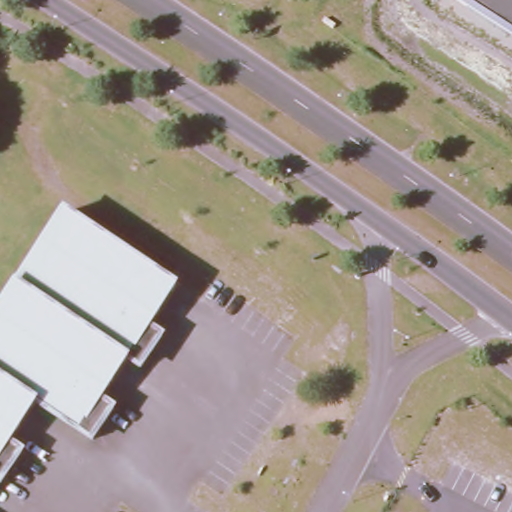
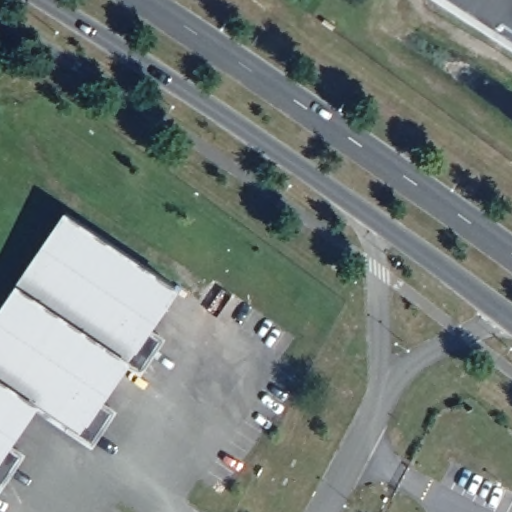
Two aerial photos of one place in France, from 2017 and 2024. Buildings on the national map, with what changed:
unchanged [(444,0),(512,0),(512,43),(444,0)]
unchanged [(63,209),(177,285),(150,329),(162,336),(141,370),(127,361),(102,399),(113,408),(92,446),(33,405),(11,442),(25,450),(0,488),(0,306),(63,209)]

